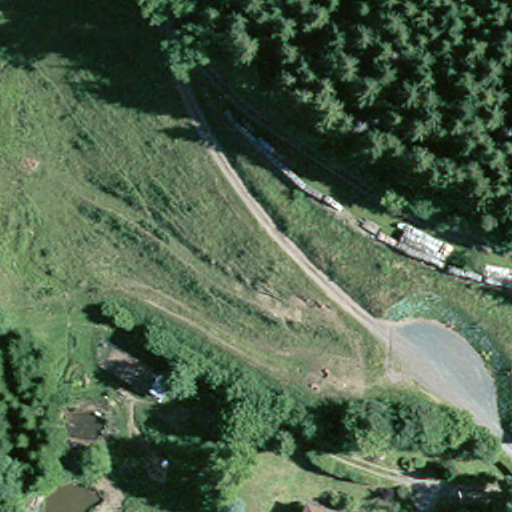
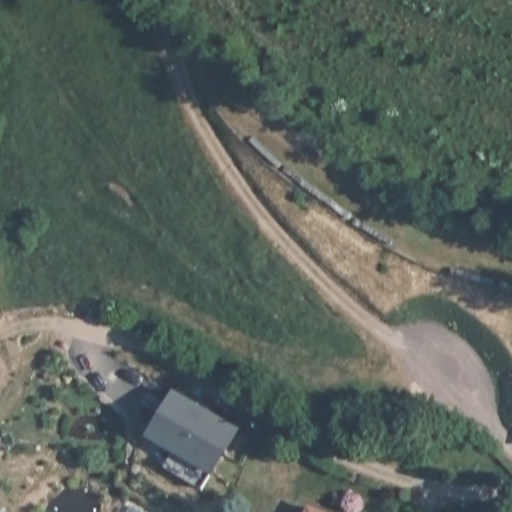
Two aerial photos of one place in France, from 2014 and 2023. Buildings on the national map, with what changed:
new [(238,427),(212,472),(145,434),(172,388),(238,427)]
unchanged [(314,512),(304,512),(306,509),(314,512)]

